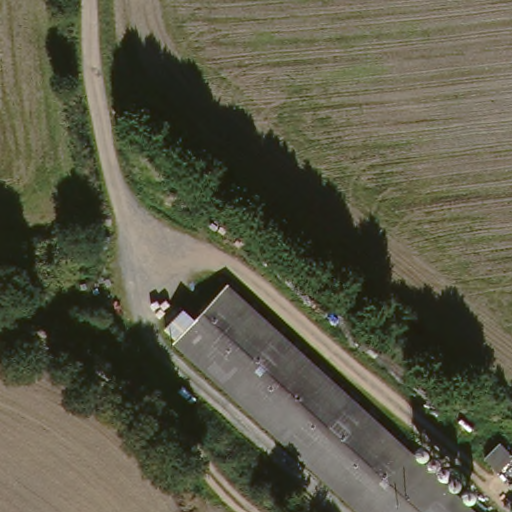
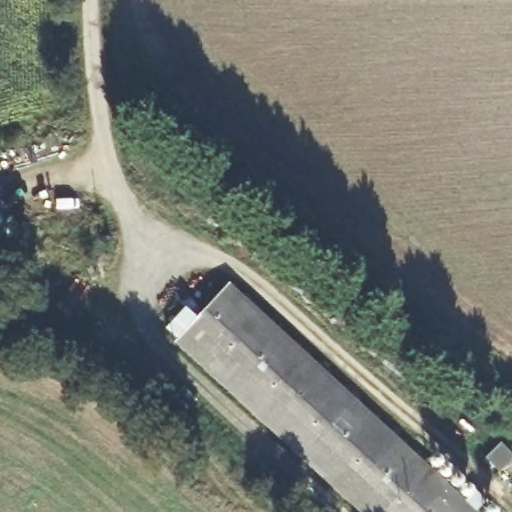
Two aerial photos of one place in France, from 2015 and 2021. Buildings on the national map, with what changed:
unchanged [(226,285),(474,512),(363,512),(176,340),(226,285)]
unchanged [(512,456),(512,461),(507,465),(500,473),(485,458),(491,452),(500,443),(512,456)]

